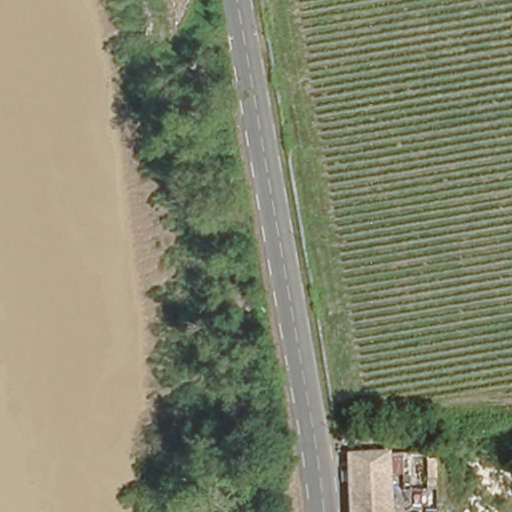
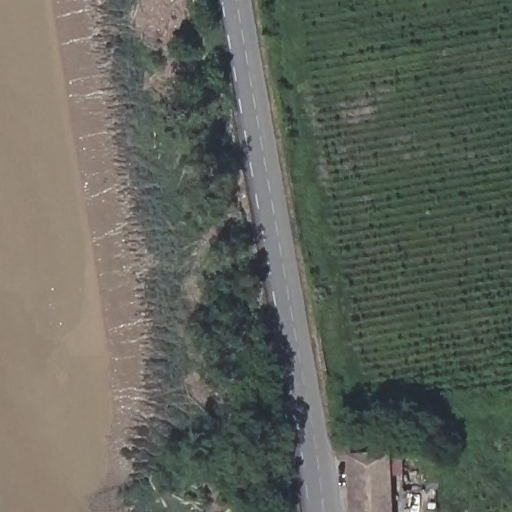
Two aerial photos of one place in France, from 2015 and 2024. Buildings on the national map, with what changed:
unchanged [(394,452),(395,512),(351,512),(350,452),(394,452)]

